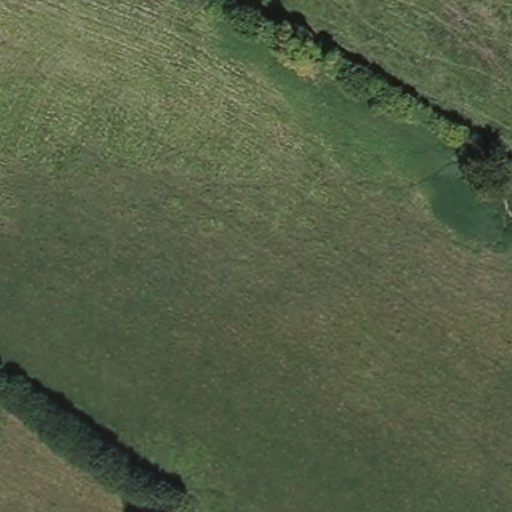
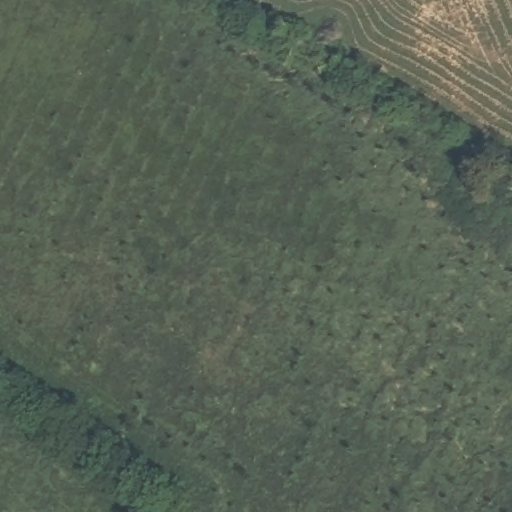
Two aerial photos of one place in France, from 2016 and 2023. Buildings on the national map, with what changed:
[]

